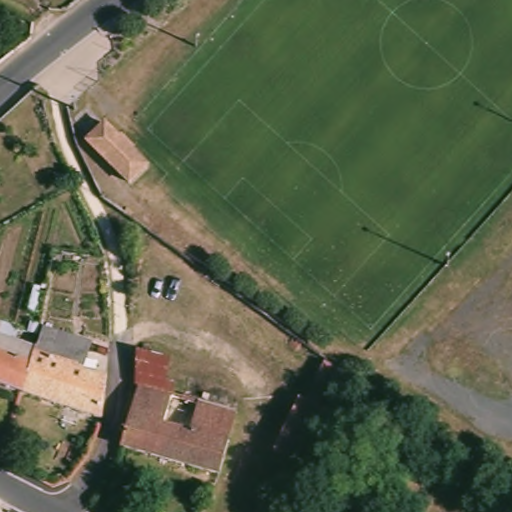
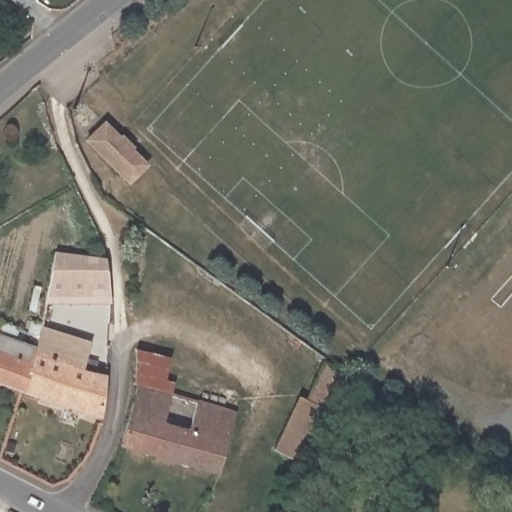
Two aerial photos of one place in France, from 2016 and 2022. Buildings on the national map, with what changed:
unchanged [(146,164),(129,181),(114,167),(110,170),(99,159),(102,155),(88,141),(105,122),(146,164)]
new [(58,249),(108,256),(116,301),(52,301),(58,249)]
unchanged [(46,331),(53,333),(60,336),(86,345),(76,370),(101,379),(99,400),(98,406),(97,420),(49,407),(20,396),(28,373),(34,355),(36,356),(46,331)]
unchanged [(0,342),(22,350),(25,344),(36,348),(34,355),(28,373),(20,396),(0,389),(0,342)]
unchanged [(220,471),(121,445),(137,385),(135,385),(137,348),(168,359),(160,391),(236,410),(220,471)]
unchanged [(297,464),(273,453),(297,400),(306,404),(325,363),(340,370),(297,464)]

